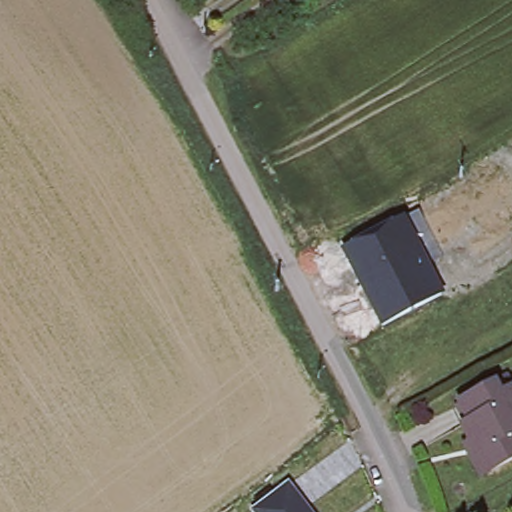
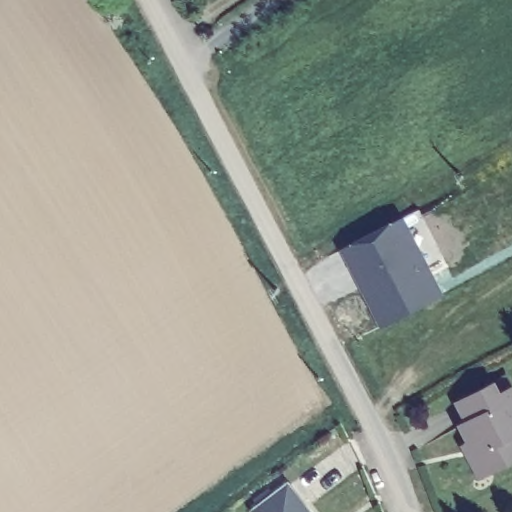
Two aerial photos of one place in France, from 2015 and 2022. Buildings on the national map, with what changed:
unchanged [(341,247),(405,216),(445,294),(382,325),(341,247)]
unchanged [(469,444),(460,427),(467,423),(458,407),(494,388),(505,382),(509,389),(512,395),(512,457),(491,468),(477,476),(462,447),(469,444)]
unchanged [(250,511),(290,482),(312,512),(251,512),(250,511)]

